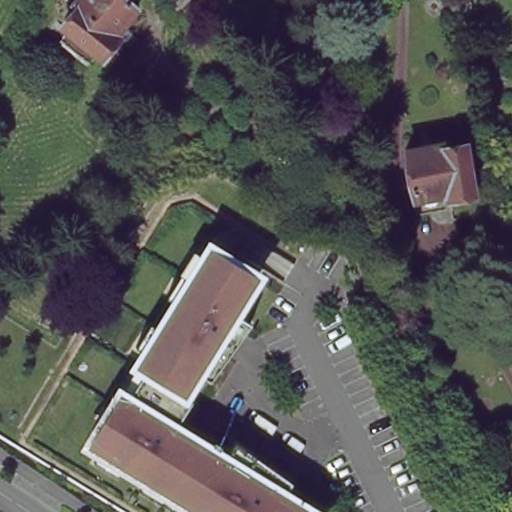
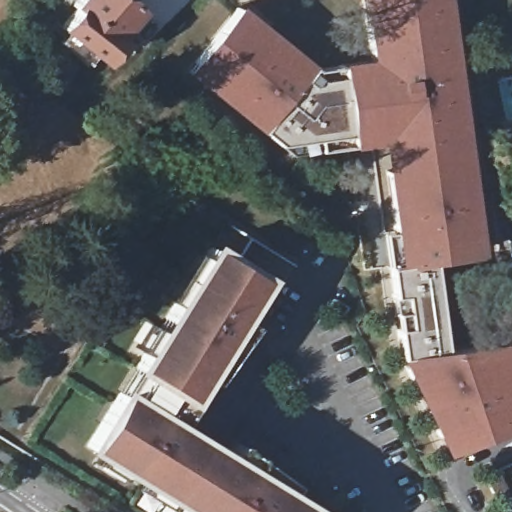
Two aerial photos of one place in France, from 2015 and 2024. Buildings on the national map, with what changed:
unchanged [(121,18),(125,20),(116,30),(118,32),(101,52),(95,47),(86,58),(57,34),(67,23),(60,18),(75,0),(135,0),(136,1),(121,18)]
new [(375,67),(370,0),(457,0),(491,263),(446,270),(455,356),(512,349),(512,439),(453,462),(405,363),(397,271),(405,270),(390,150),(360,151),(359,143),(295,159),(190,73),(246,10),(322,71),(375,67)]
demolished [(205,0),(217,0),(211,6),(205,0)]
unchanged [(491,46),(492,56),(478,58),(477,48),(491,46)]
demolished [(445,196),(446,205),(411,212),(399,148),(435,140),(436,144),(459,141),(469,192),(445,196)]
unchanged [(512,216),(512,259),(503,218),(512,216)]
unchanged [(115,394),(130,368),(201,252),(250,281),(227,319),(242,329),(227,350),(218,362),(202,386),(191,379),(176,402),(184,406),(168,432),(217,462),(227,447),(250,461),(262,469),(287,484),(280,495),(308,512),(189,512),(82,447),(115,394)]

